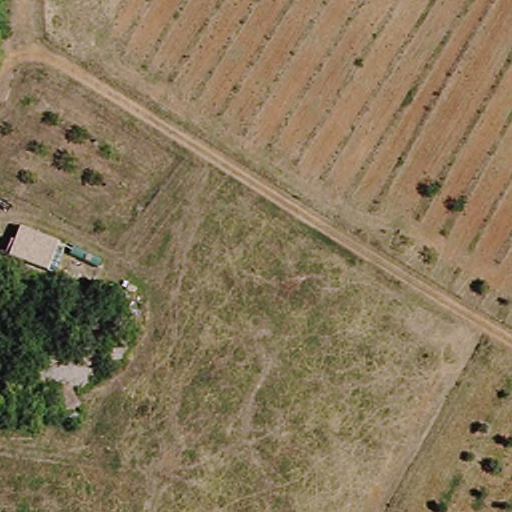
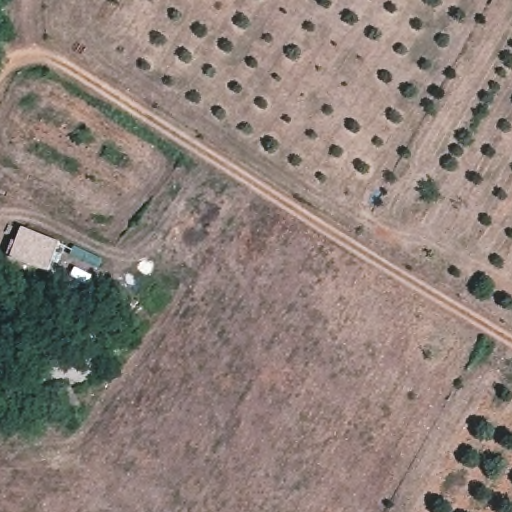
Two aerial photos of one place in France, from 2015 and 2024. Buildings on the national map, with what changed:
unchanged [(8,257),(4,256),(11,240),(15,241),(21,227),(58,242),(47,271),(8,257)]

